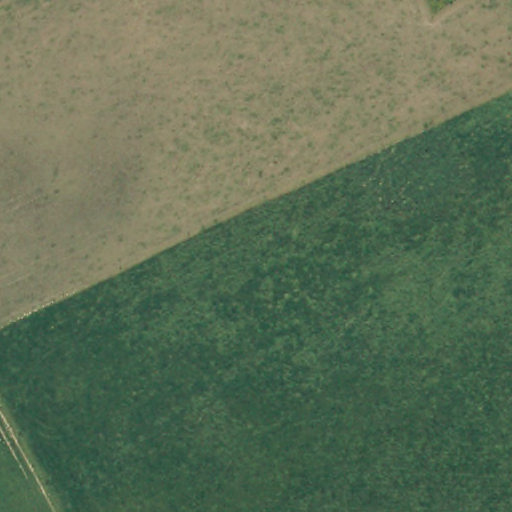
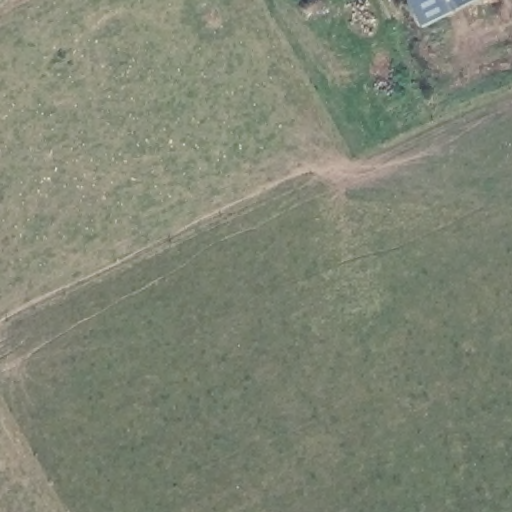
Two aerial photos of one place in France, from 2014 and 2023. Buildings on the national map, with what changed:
new [(419,27),(406,0),(471,0),(419,27)]

